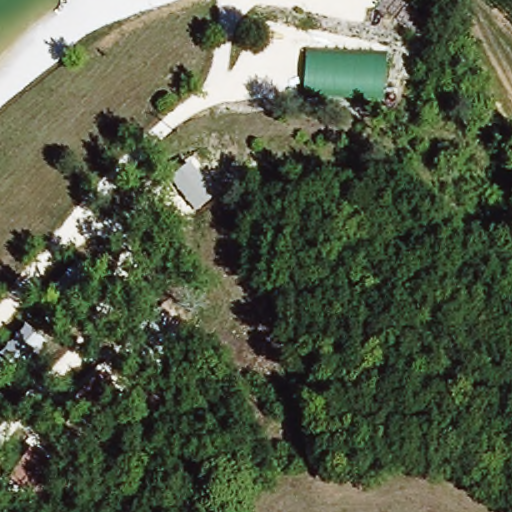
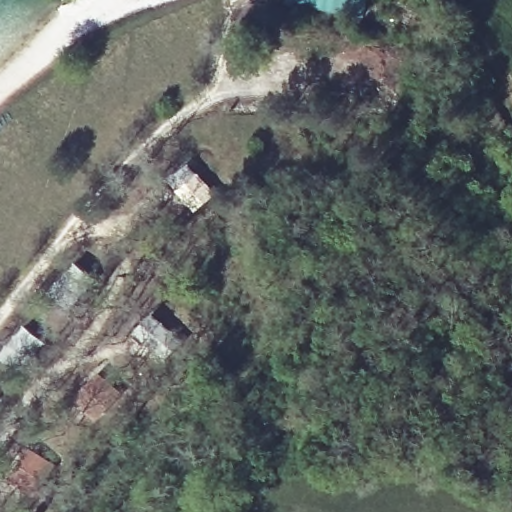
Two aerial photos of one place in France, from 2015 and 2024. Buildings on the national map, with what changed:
demolished [(386,52),(385,97),(303,92),(307,47),(386,52)]
unchanged [(171,188),(195,166),(212,185),(189,207),(171,188)]
unchanged [(159,321),(178,338),(155,364),(136,347),(159,321)]
unchanged [(75,412),(96,384),(117,401),(96,428),(75,412)]
unchanged [(50,479),(30,506),(10,490),(30,463),(50,479)]

